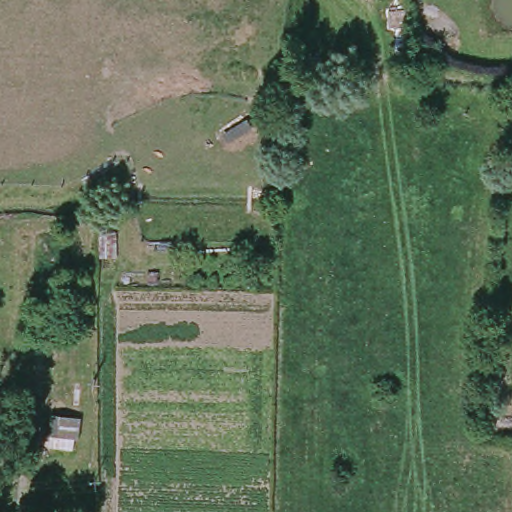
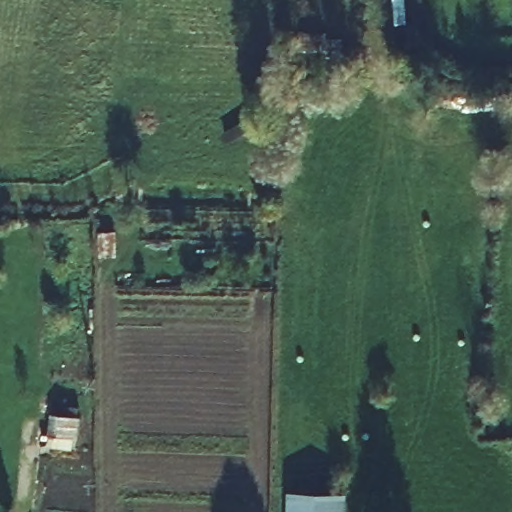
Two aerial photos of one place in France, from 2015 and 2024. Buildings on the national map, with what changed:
new [(347,512),(287,512),(288,491),(347,493),(347,512)]

